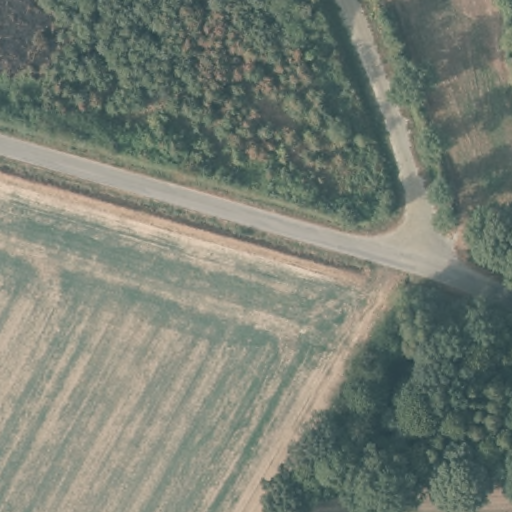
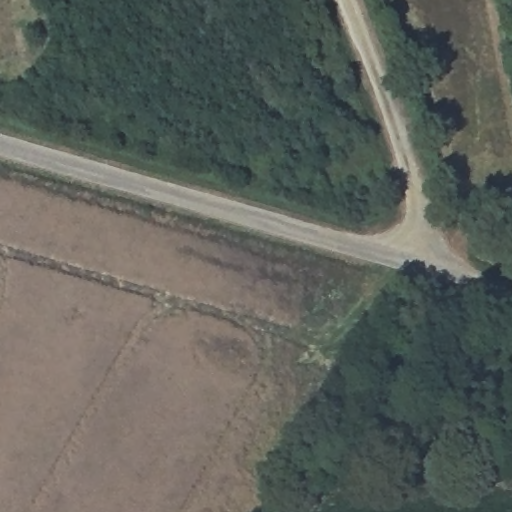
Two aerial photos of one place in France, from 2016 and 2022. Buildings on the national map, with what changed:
[]

